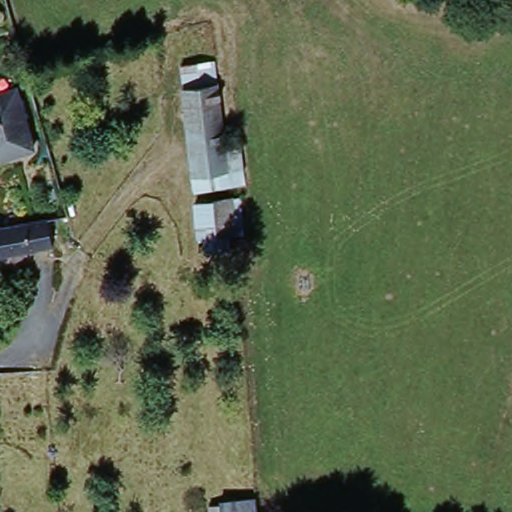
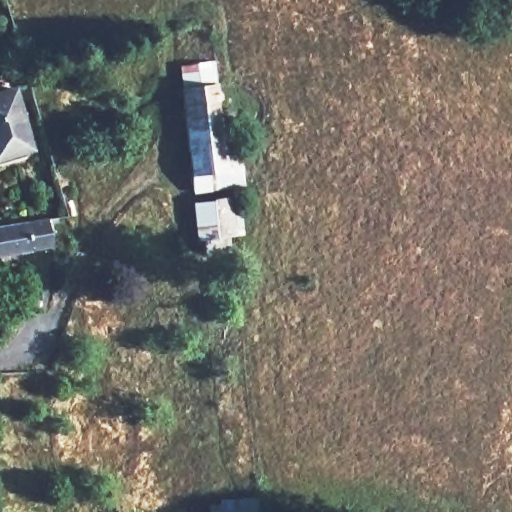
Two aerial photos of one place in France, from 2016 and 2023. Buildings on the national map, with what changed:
unchanged [(182,67),(219,61),(226,134),(244,133),(249,184),(195,192),(182,67)]
unchanged [(24,89),(33,150),(0,156),(0,94),(24,89)]
unchanged [(228,236),(228,249),(206,253),(205,239),(198,238),(195,201),(231,200),(235,237),(228,236)]
unchanged [(50,219),(54,247),(0,252),(0,224),(30,221),(50,219)]
unchanged [(257,492),(259,512),(222,512),(221,497),(257,492)]

